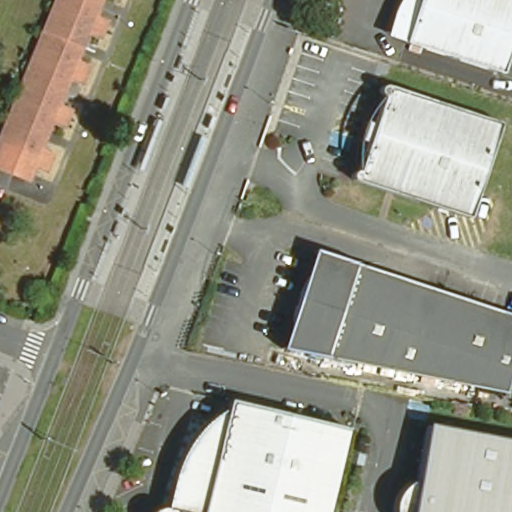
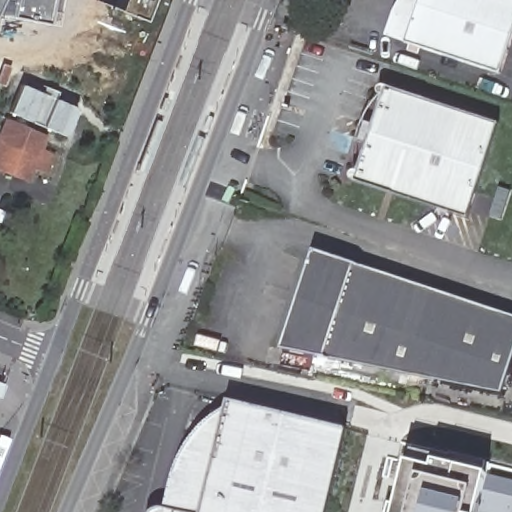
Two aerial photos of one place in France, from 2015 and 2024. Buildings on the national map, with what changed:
demolished [(21,98),(34,65),(48,30),(59,3),(60,0),(101,0),(95,16),(108,21),(101,39),(88,34),(77,60),(90,65),(83,82),(70,77),(60,103),(72,108),(65,126),(53,121),(42,147),(55,152),(48,170),(35,165),(29,182),(0,171),(0,150),(6,133),(21,98)]
new [(48,24),(1,17),(4,0),(53,0),(48,24)]
new [(98,0),(128,0),(124,11),(98,1),(98,0)]
unchanged [(391,37),(391,32),(392,27),(394,22),(395,17),(397,13),(400,8),(402,4),(404,0),(423,0),(422,4),(416,23),(410,43),(391,37)]
unchanged [(416,23),(422,4),(423,0),(512,0),(512,49),(505,72),(410,43),(416,23)]
new [(21,85),(37,92),(41,84),(58,92),(55,99),(78,108),(66,136),(9,113),(21,85)]
unchanged [(498,123),(468,218),(355,181),(353,180),(352,178),(351,177),(352,175),(352,173),(354,172),(355,172),(357,171),(359,172),(358,167),(358,162),(358,157),(358,151),(358,146),(359,141),(360,136),(362,131),(362,130),(363,126),(365,122),(368,117),(370,112),(373,108),(376,104),(379,100),(383,96),(381,96),(380,94),(379,93),(379,91),(379,89),(380,87),(381,86),(383,86),(386,87),(498,123)]
new [(48,136),(43,149),(55,153),(47,173),(34,168),(28,182),(0,171),(0,132),(6,119),(48,136)]
unchanged [(512,325),(512,385),(509,396),(293,352),(321,257),(512,325)]
unchanged [(182,465),(187,456),(199,438),(207,430),(215,423),(218,421),(220,420),(227,417),(229,407),(346,435),(348,436),(330,512),(169,512),(175,487),(182,465)]
demolished [(416,512),(431,434),(512,450),(512,512),(416,512)]
new [(402,512),(418,447),(512,473),(512,512),(402,512)]

